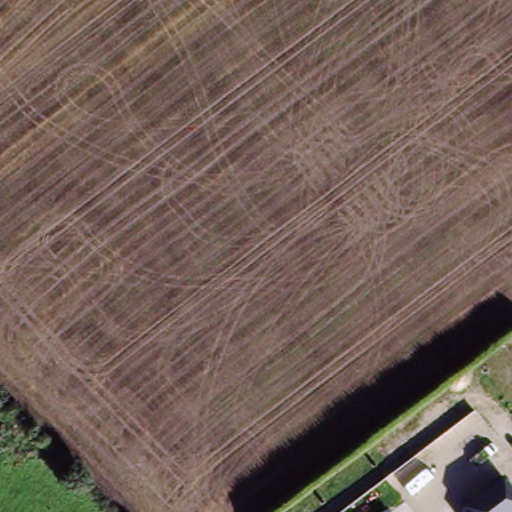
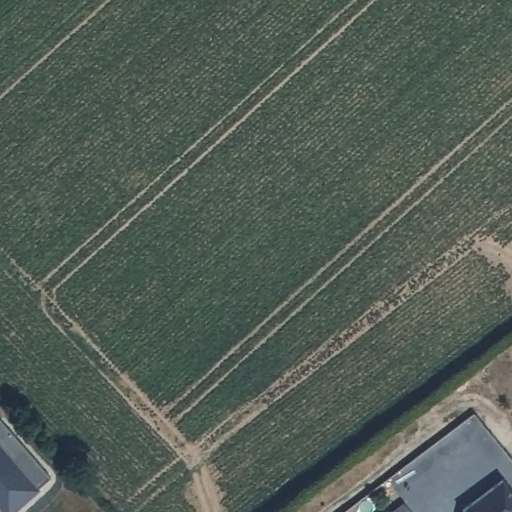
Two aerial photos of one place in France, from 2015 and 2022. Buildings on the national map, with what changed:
new [(52,477),(12,512),(0,512),(0,416),(52,477)]
unchanged [(503,477),(512,491),(512,512),(459,512),(460,507),(503,477)]

